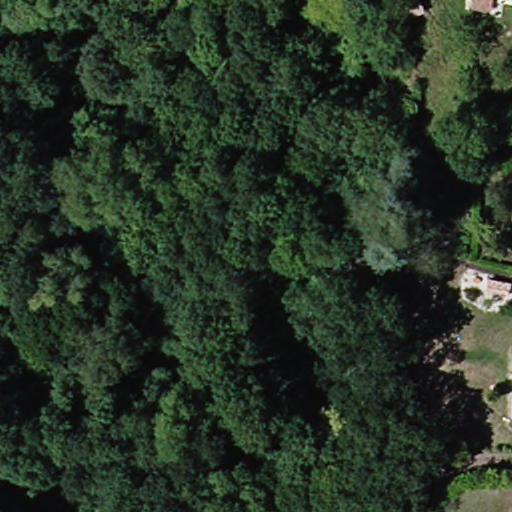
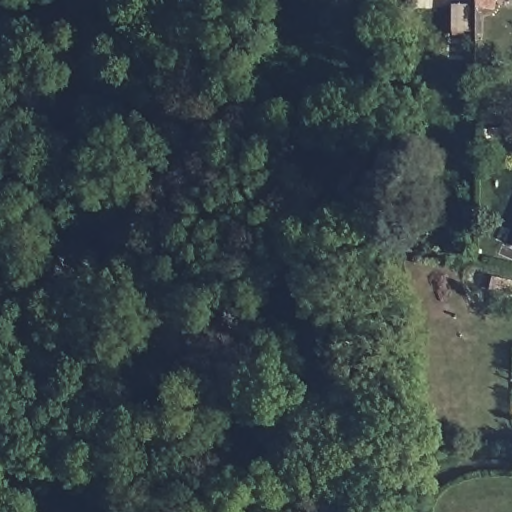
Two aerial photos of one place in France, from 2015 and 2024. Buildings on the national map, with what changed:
unchanged [(467,0),(486,0),(485,4),(466,2),(467,0)]

